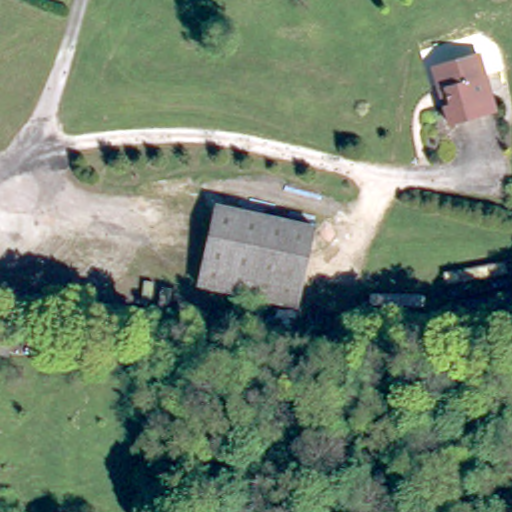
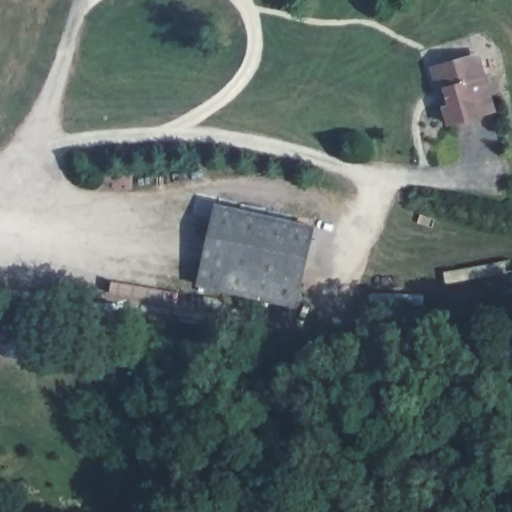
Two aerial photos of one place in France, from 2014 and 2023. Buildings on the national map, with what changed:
unchanged [(450,114),(445,94),(447,95),(447,93),(447,91),(451,90),(449,81),(438,75),(437,70),(437,64),(440,58),(457,53),(480,48),(482,58),(494,103),(450,114)]
unchanged [(197,276),(215,200),(312,226),(292,303),(197,276)]

